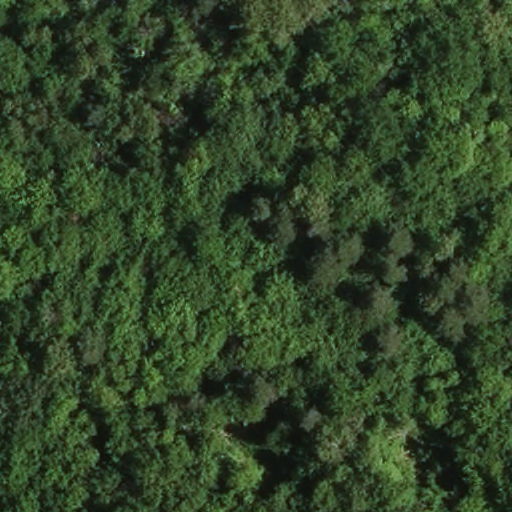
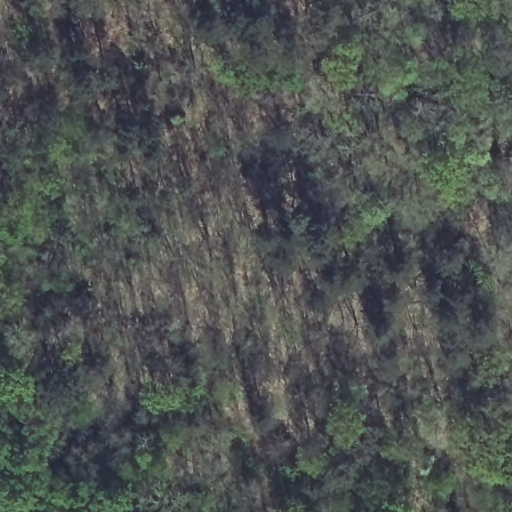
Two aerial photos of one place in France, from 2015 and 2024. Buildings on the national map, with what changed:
[]

